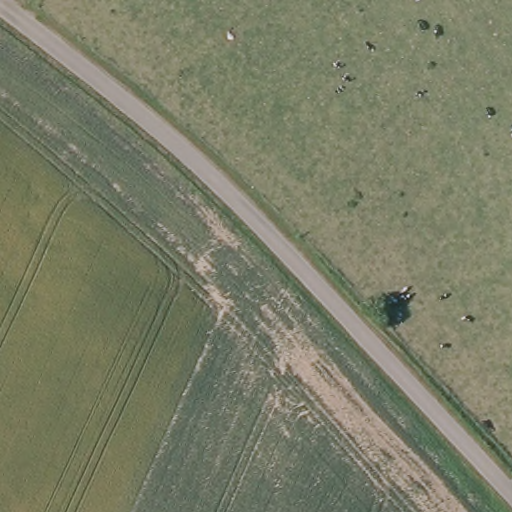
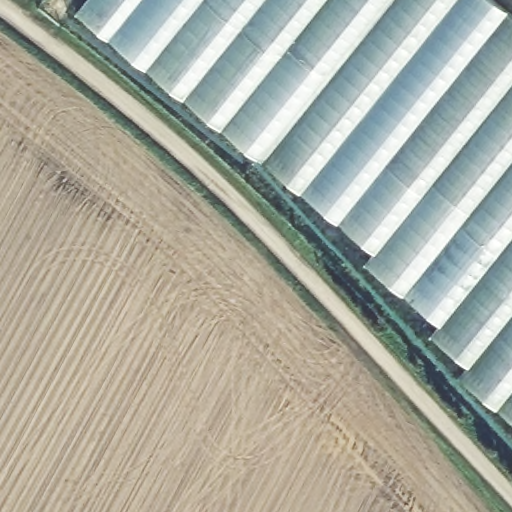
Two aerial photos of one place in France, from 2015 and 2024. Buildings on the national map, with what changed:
new [(459,378),(469,366),(432,337),(441,325),(366,265),(376,253),(78,15),(89,0),(494,0),(512,14),(512,420),(459,378)]

